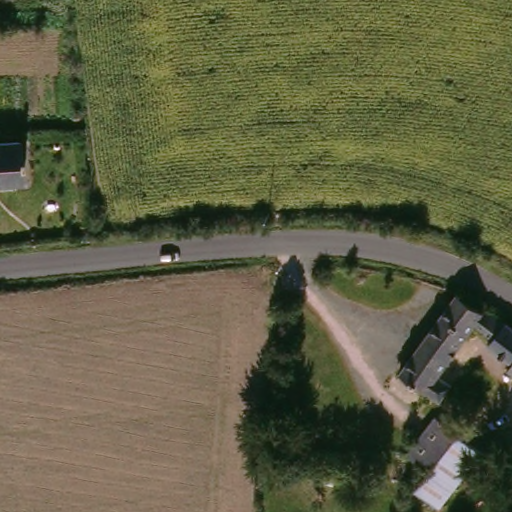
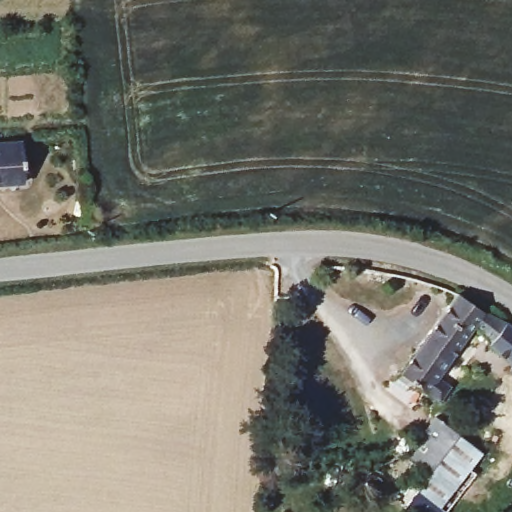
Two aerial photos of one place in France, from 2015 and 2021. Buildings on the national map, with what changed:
unchanged [(21,142),(24,185),(0,186),(0,143),(21,142)]
unchanged [(476,347),(477,345),(459,331),(412,400),(387,382),(447,297),(488,322),(489,321),(512,338),(512,355),(503,366),(476,347)]
unchanged [(503,366),(512,355),(512,382),(498,372),(503,366)]
unchanged [(476,457),(432,512),(408,492),(452,437),(476,457)]

